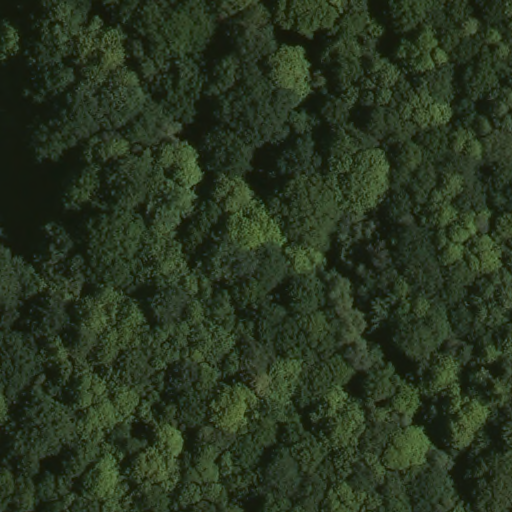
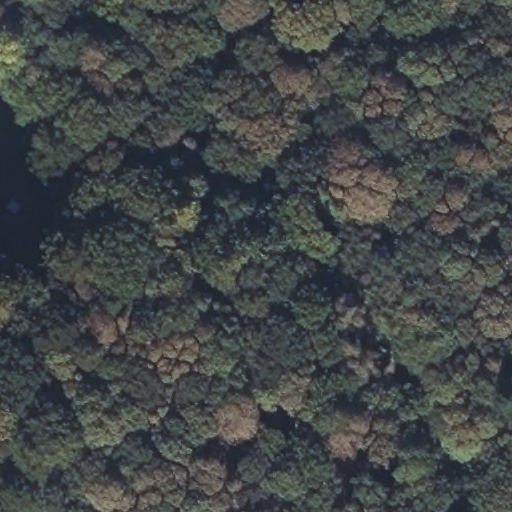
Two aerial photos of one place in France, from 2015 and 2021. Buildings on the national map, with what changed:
unchanged [(14,38),(0,37),(0,0),(18,0),(14,38)]

